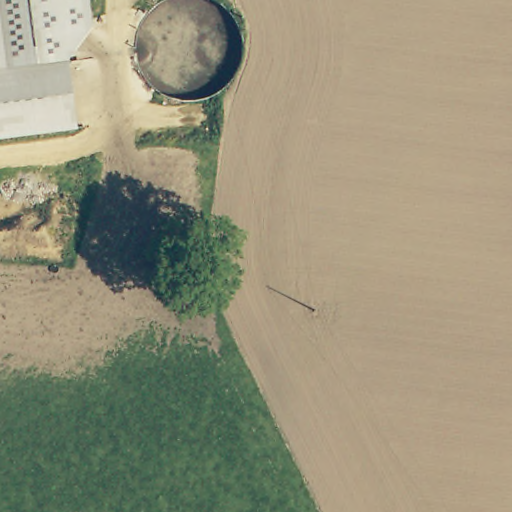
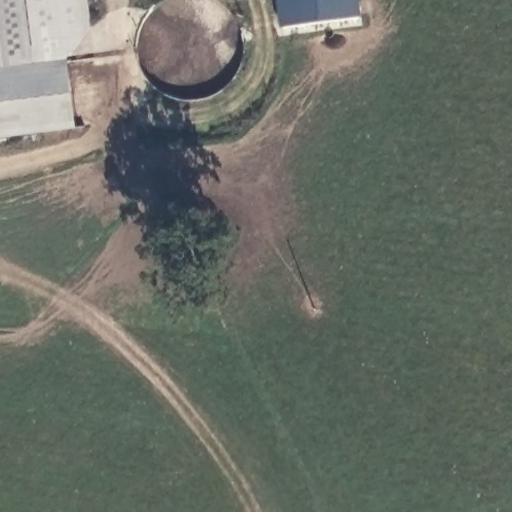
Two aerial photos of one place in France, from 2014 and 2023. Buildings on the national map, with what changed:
unchanged [(67,61),(77,129),(0,139),(0,0),(89,0),(92,29),(67,61)]
new [(280,0),(361,0),(363,14),(283,27),(280,0)]

